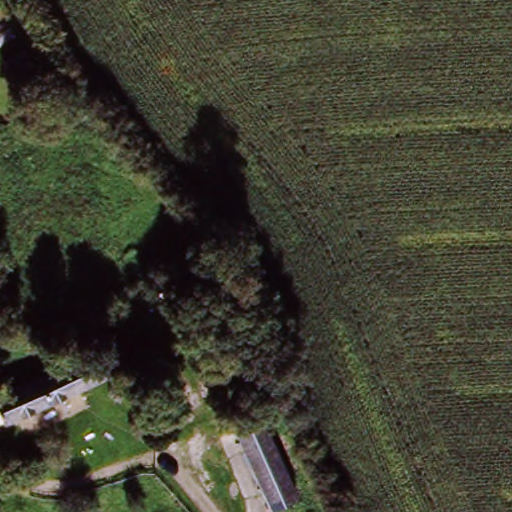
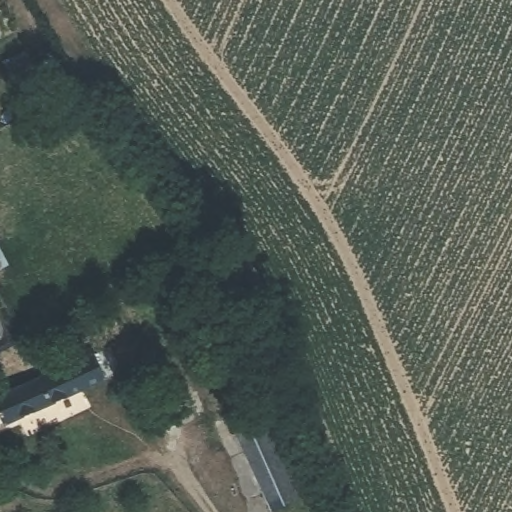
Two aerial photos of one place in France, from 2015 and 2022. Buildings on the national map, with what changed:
unchanged [(6,179),(19,204),(0,215),(0,182),(6,179)]
unchanged [(0,266),(0,244),(9,261),(0,266)]
unchanged [(13,386),(15,391),(90,355),(101,380),(0,428),(0,393),(13,386)]
unchanged [(268,505),(234,423),(260,411),(295,495),(268,505)]

